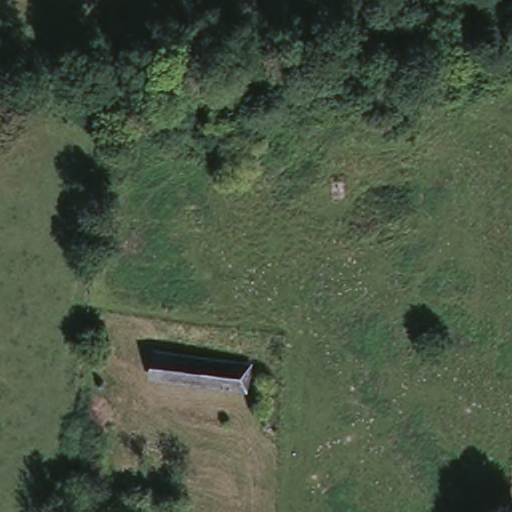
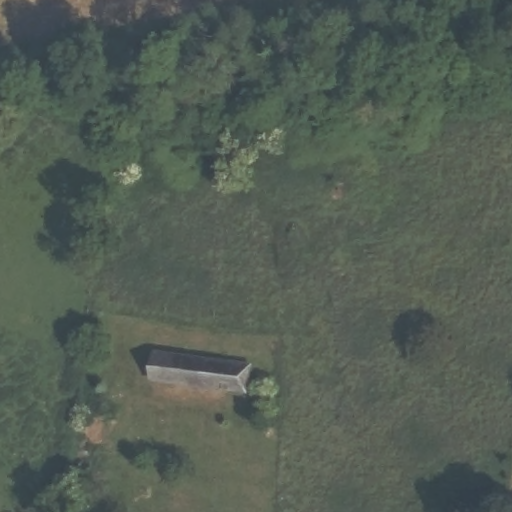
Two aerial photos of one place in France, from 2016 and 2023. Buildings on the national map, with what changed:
unchanged [(247,389),(158,385),(158,358),(248,360),(247,389)]

